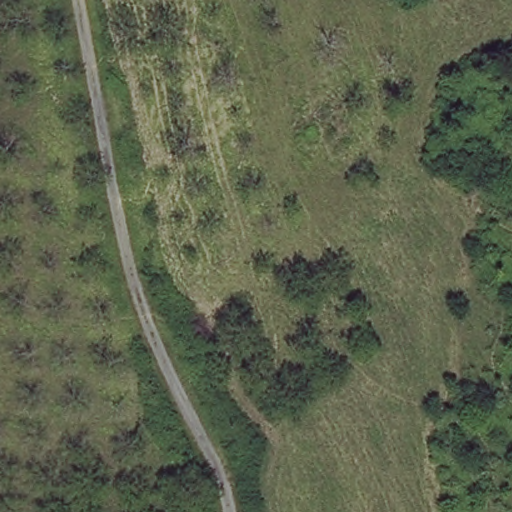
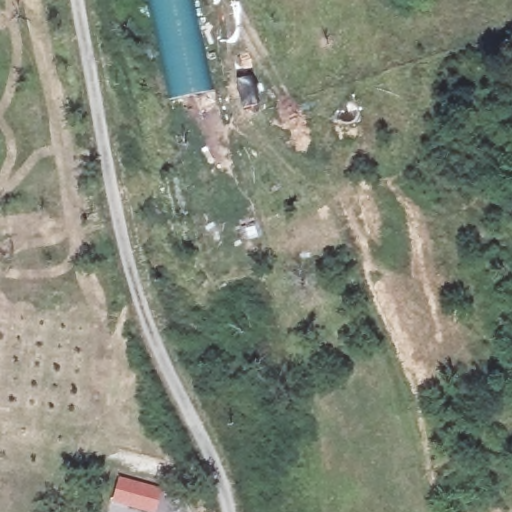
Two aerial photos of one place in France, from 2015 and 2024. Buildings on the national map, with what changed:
new [(212,90),(168,100),(146,0),(192,0),(198,24),(212,90)]
new [(118,479),(161,491),(155,512),(148,512),(112,503),(118,479)]

